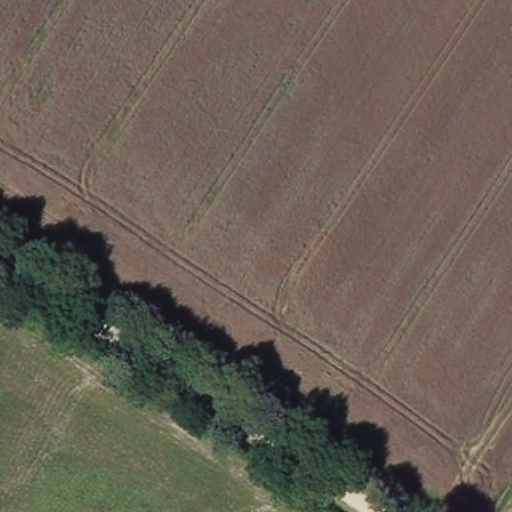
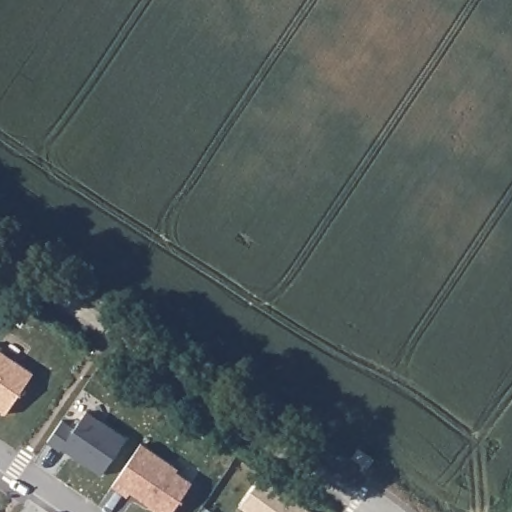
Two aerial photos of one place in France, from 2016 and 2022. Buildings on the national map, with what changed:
new [(6,415),(0,411),(0,348),(35,373),(6,415)]
new [(60,421),(73,429),(85,412),(125,439),(100,476),(61,449),(59,452),(45,443),(60,421)]
new [(140,444),(177,470),(175,472),(191,483),(172,512),(154,512),(148,508),(149,507),(129,493),(126,497),(111,487),(140,444)]
new [(262,476),(312,512),(247,512),(239,507),(262,476)]

